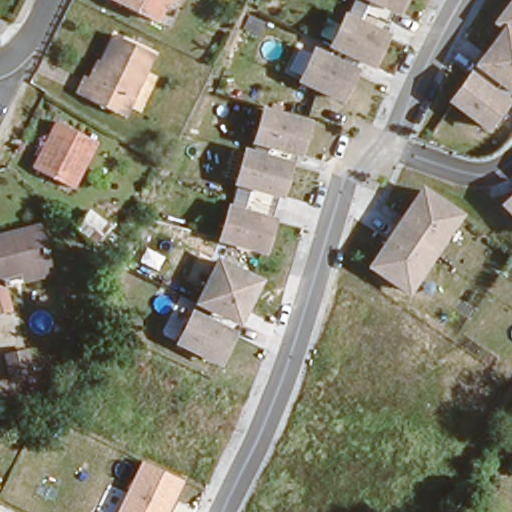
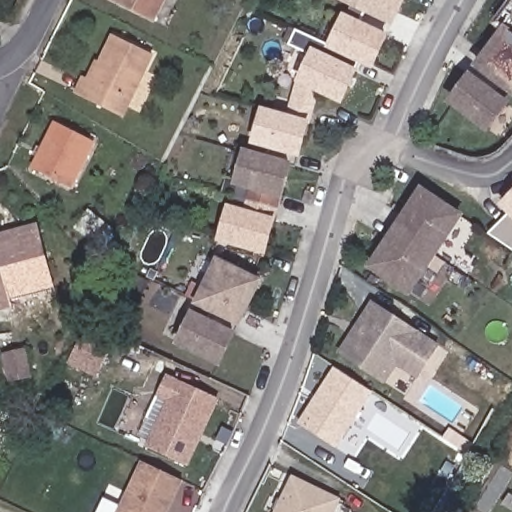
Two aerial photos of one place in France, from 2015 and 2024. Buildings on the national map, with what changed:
unchanged [(106,0),(162,0),(151,22),(106,0)]
unchanged [(364,0),(404,0),(397,16),(364,0)]
unchanged [(470,64),(495,27),(490,23),(507,0),(512,0),(512,97),(470,64)]
unchanged [(372,71),(325,45),(340,11),(387,36),(372,71)]
unchanged [(112,109),(72,91),(79,73),(89,77),(110,31),(150,50),(129,98),(121,114),(112,109)]
unchanged [(341,104),(293,81),(310,46),(357,69),(341,104)]
unchanged [(485,138),(443,103),(468,70),(510,101),(485,138)]
unchanged [(298,159),(249,142),(260,106),(309,120),(298,159)]
unchanged [(70,187),(30,166),(50,119),(93,137),(70,187)]
unchanged [(280,201),(229,184),(240,146),(292,164),(280,201)]
unchanged [(409,298),(364,266),(417,184),(462,217),(409,298)]
unchanged [(512,190),(512,222),(495,209),(512,190)]
unchanged [(262,258),(215,244),(227,202),(275,219),(262,258)]
unchanged [(114,239),(102,251),(82,232),(94,219),(114,239)]
unchanged [(19,287),(16,276),(2,279),(5,289),(0,290),(0,237),(39,231),(47,270),(49,281),(19,287)]
unchanged [(238,326),(192,303),(215,255),(261,278),(238,326)]
new [(416,379),(396,366),(384,384),(336,353),(372,299),(439,344),(416,379)]
unchanged [(221,368),(171,342),(187,309),(237,336),(221,368)]
new [(67,364),(87,325),(116,340),(96,379),(67,364)]
unchanged [(35,374),(23,378),(12,353),(25,348),(35,374)]
new [(370,392),(333,448),(297,424),(334,369),(370,392)]
new [(188,466),(145,447),(166,401),(156,397),(167,374),(220,399),(188,466)]
unchanged [(170,512),(118,512),(142,462),(185,480),(170,512)]
new [(334,512),(274,512),(292,475),(340,498),(334,512)]

